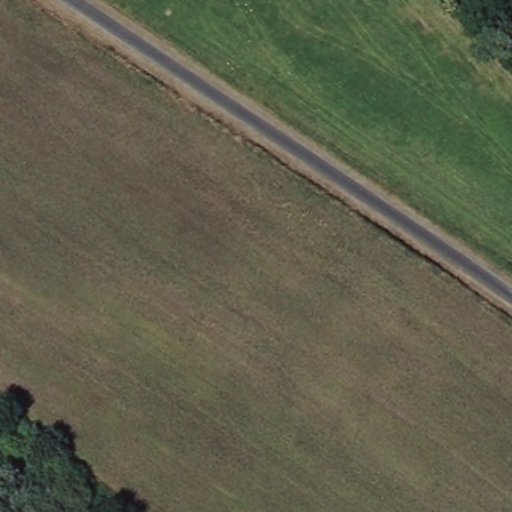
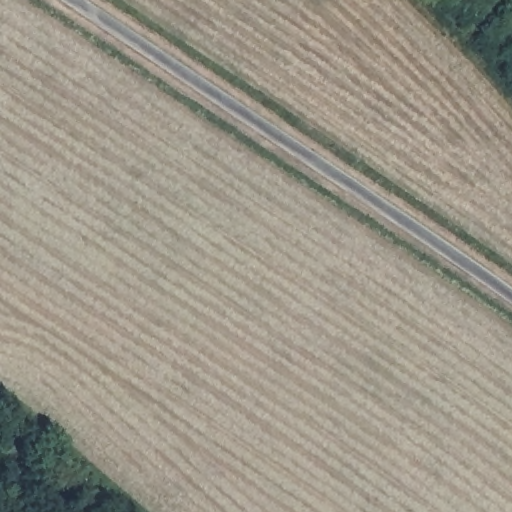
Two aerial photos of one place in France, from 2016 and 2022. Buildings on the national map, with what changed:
[]

